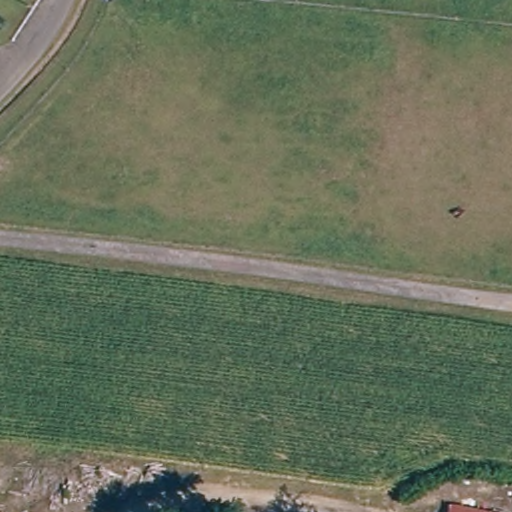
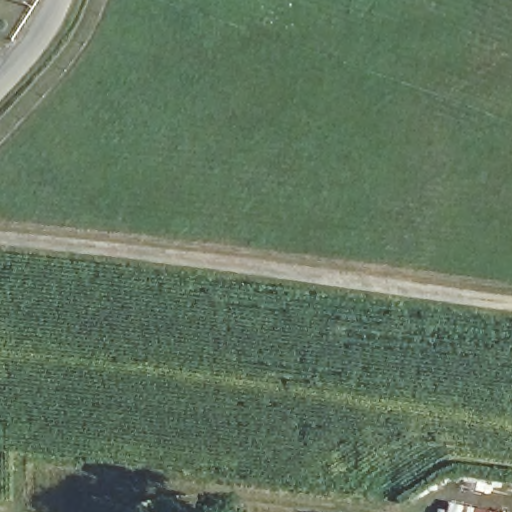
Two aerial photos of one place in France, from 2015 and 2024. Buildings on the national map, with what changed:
unchanged [(487,512),(447,512),(448,505),(487,512)]

